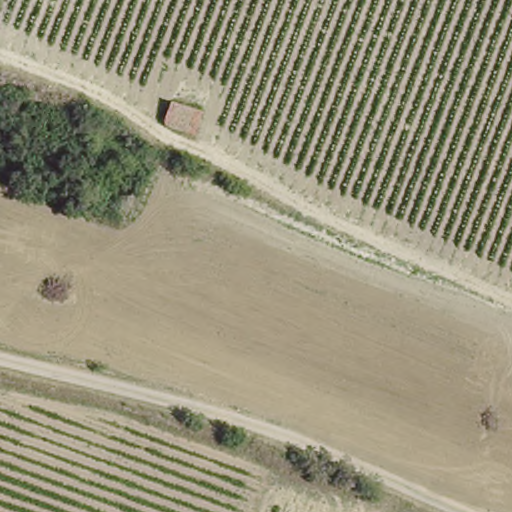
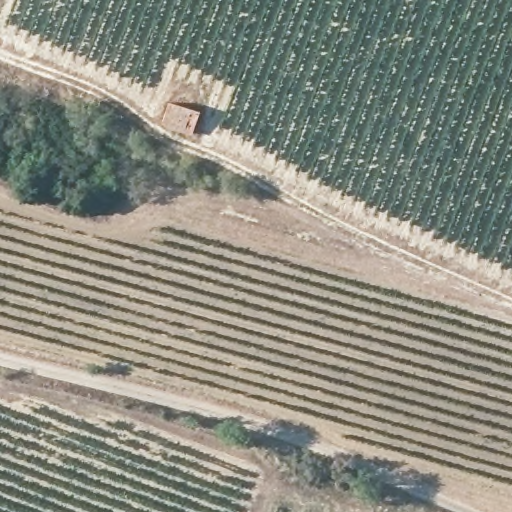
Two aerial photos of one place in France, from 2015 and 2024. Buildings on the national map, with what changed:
unchanged [(193,138),(160,129),(163,102),(197,112),(193,138)]

